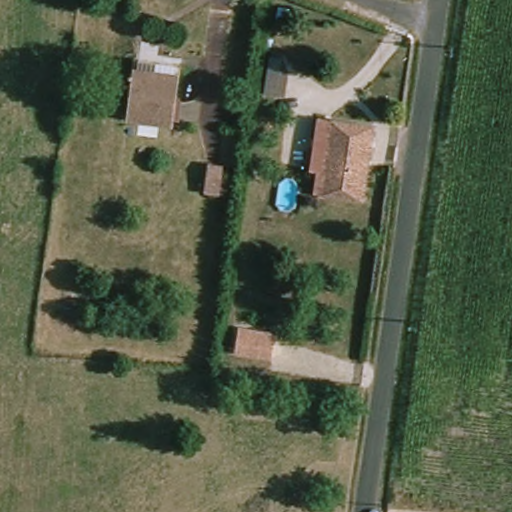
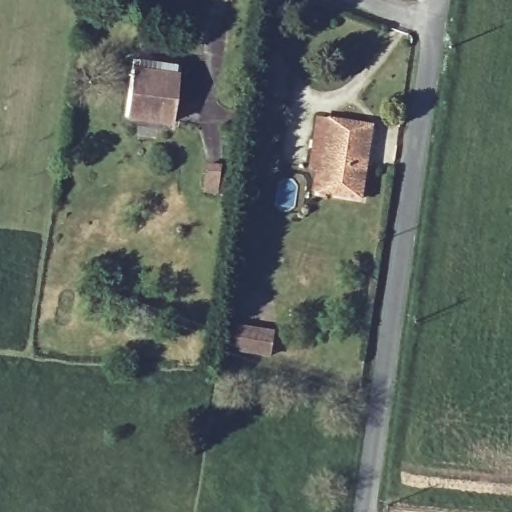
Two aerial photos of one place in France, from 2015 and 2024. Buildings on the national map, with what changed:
unchanged [(136,60),(182,67),(174,126),(127,120),(136,60)]
unchanged [(366,199),(327,194),(331,163),(321,162),(316,161),(323,116),(328,118),(336,119),(375,123),(366,199)]
unchanged [(218,159),(216,184),(202,184),(207,157),(218,159)]
unchanged [(239,324),(278,330),(275,358),(235,353),(239,324)]

